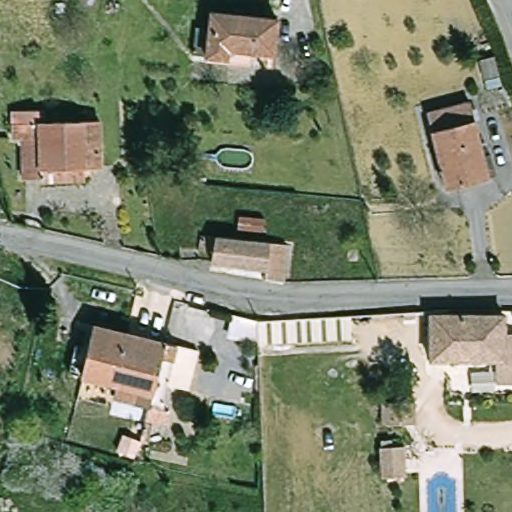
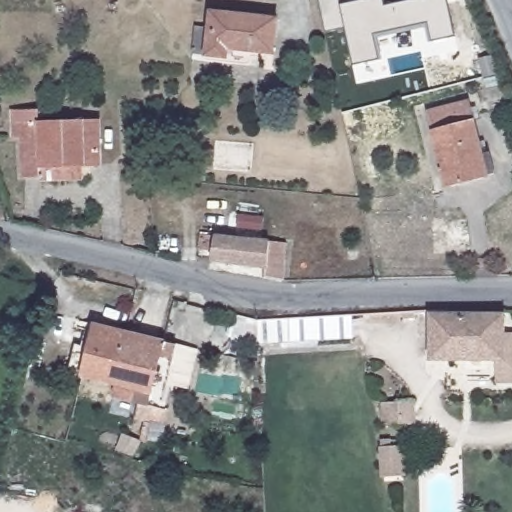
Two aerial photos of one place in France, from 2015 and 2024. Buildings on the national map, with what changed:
new [(378,37),(383,59),(354,65),(345,27),(327,30),(320,0),(340,0),(342,5),(362,0),(383,0),(385,5),(411,0),(424,0),(447,0),(455,35),(430,40),(427,27),(378,37)]
unchanged [(279,55),(233,49),(232,58),(197,54),(200,27),(215,29),(217,11),(283,18),(279,55)]
unchanged [(478,59),(494,55),(499,75),(483,79),(478,59)]
unchanged [(496,176),(488,178),(447,188),(429,114),(470,104),(483,156),(490,155),(496,176)]
unchanged [(40,182),(40,178),(21,178),(19,139),(11,139),(10,110),(38,109),(39,120),(101,119),(102,166),(84,167),(85,181),(40,182)]
unchanged [(238,214),(264,216),(262,230),(236,228),(238,214)]
unchanged [(284,277),(264,275),(265,266),(210,256),(212,245),(200,245),(201,230),(289,240),(284,277)]
unchanged [(265,320),(267,342),(236,336),(240,313),(265,320)]
unchanged [(441,360),(432,360),(432,316),(507,315),(507,334),(507,360),(499,360),(441,360)]
unchanged [(357,316),(358,341),(268,345),(267,320),(357,316)]
unchanged [(176,386),(170,385),(170,382),(164,408),(152,406),(115,397),(119,383),(85,375),(71,372),(71,370),(63,368),(64,362),(73,364),(77,344),(90,347),(96,325),(153,338),(167,341),(200,350),(193,376),(190,390),(176,386)]
unchanged [(499,360),(507,360),(507,334),(512,334),(512,384),(499,384),(499,360)]
unchanged [(415,401),(415,423),(381,424),(380,401),(415,401)]
unchanged [(120,451),(124,435),(135,437),(143,442),(136,455),(120,451)]
unchanged [(379,447),(404,446),(405,475),(381,476),(379,447)]

